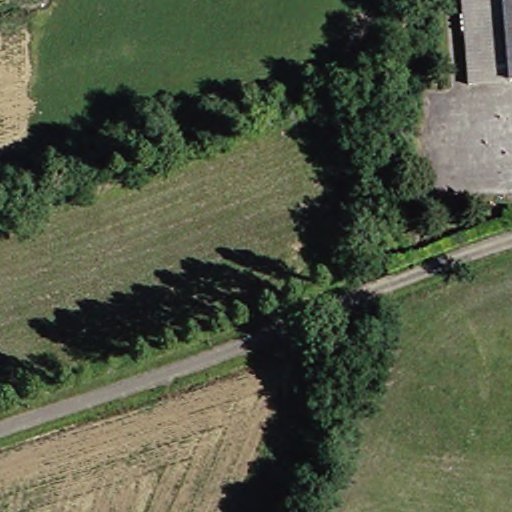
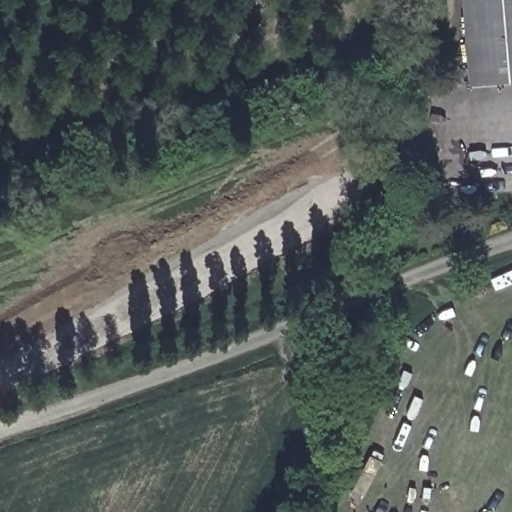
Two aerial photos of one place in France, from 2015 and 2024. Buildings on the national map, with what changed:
unchanged [(465,0),(512,0),(512,79),(470,82),(465,0)]

